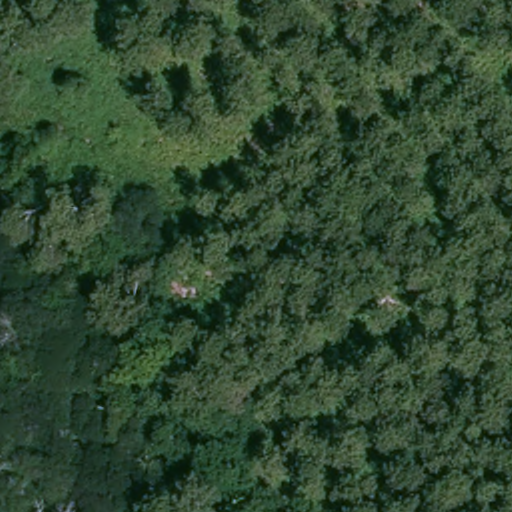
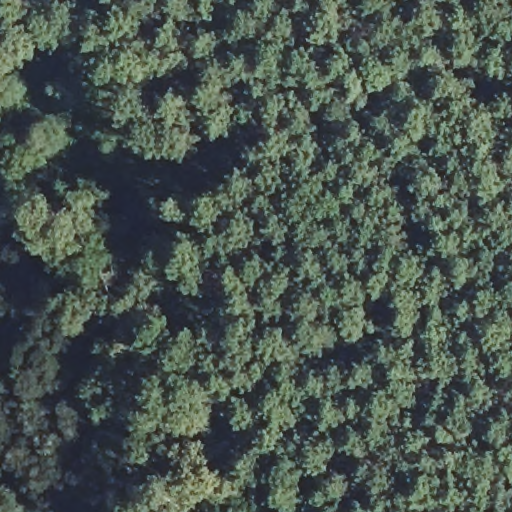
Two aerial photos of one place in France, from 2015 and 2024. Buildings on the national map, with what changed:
[]

